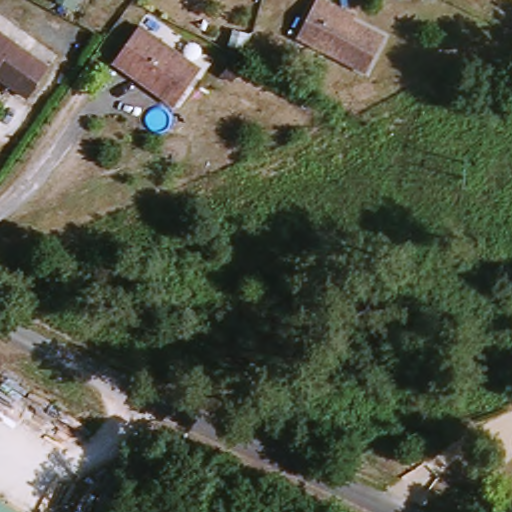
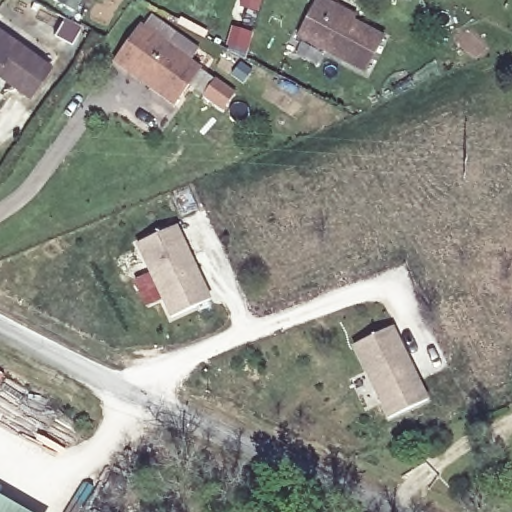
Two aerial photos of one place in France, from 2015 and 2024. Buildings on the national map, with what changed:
unchanged [(297,37),(316,0),(322,0),(333,5),(354,17),(352,21),(384,37),(365,72),(297,37)]
unchanged [(113,62),(139,26),(200,69),(174,105),(148,86),(127,71),(113,62)]
unchanged [(0,74),(0,29),(54,68),(33,98),(0,74)]
new [(172,317),(138,245),(177,227),(209,300),(172,317)]
new [(391,417),(355,346),(393,327),(427,400),(391,417)]
unchanged [(0,502),(18,512),(0,512),(0,502)]

